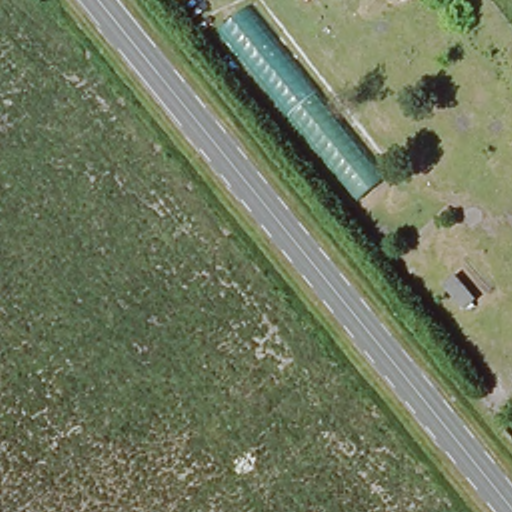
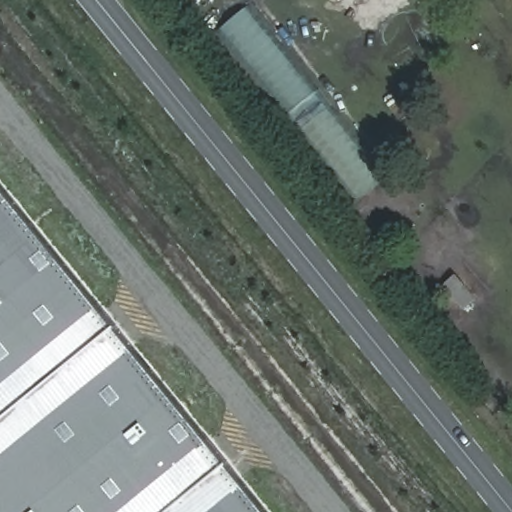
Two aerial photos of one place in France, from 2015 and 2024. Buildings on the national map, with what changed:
unchanged [(385,174),(352,199),(216,31),(214,27),(252,5),(385,174)]
new [(268,512),(0,512),(0,183),(268,512)]

